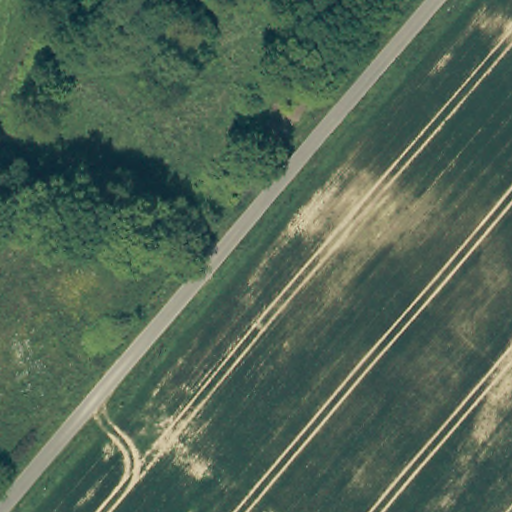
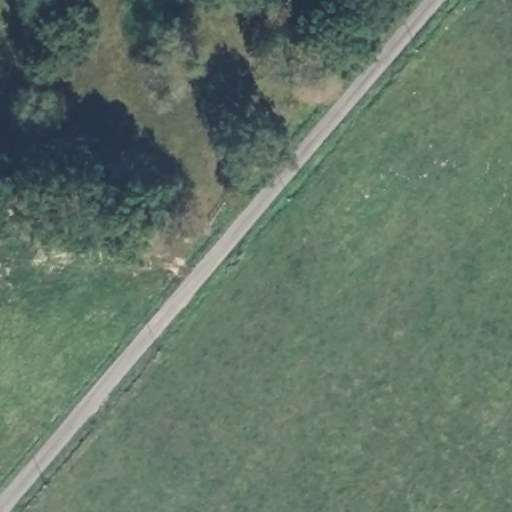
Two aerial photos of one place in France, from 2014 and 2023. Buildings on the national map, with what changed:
unchanged [(49,209),(23,203),(25,192),(51,198),(49,209)]
unchanged [(74,221),(59,216),(63,201),(79,206),(74,221)]

